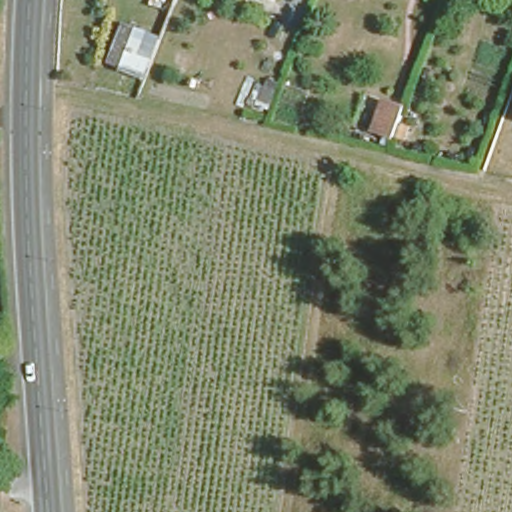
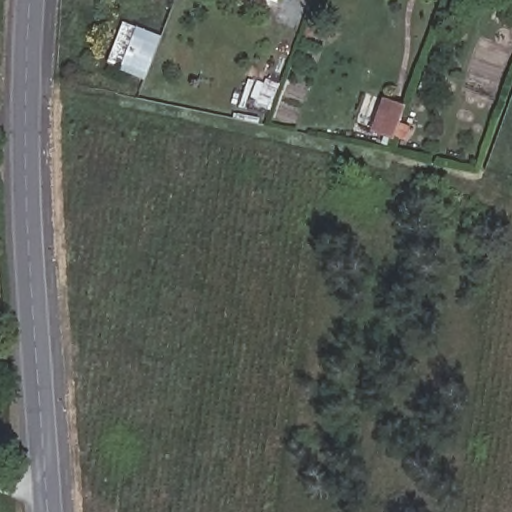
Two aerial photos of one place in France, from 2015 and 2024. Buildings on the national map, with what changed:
unchanged [(148,79),(107,66),(122,22),(162,38),(148,79)]
unchanged [(370,131),(381,101),(400,108),(389,137),(370,131)]

